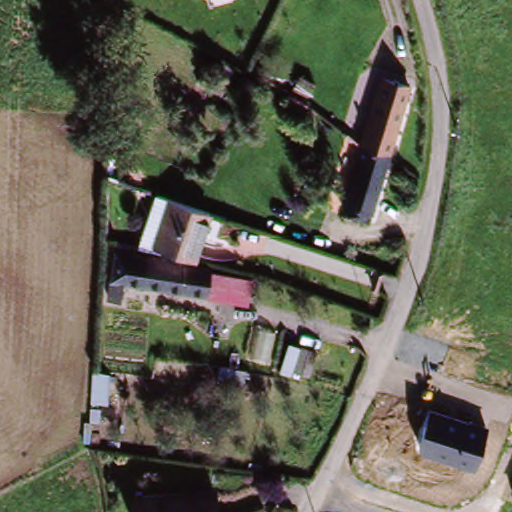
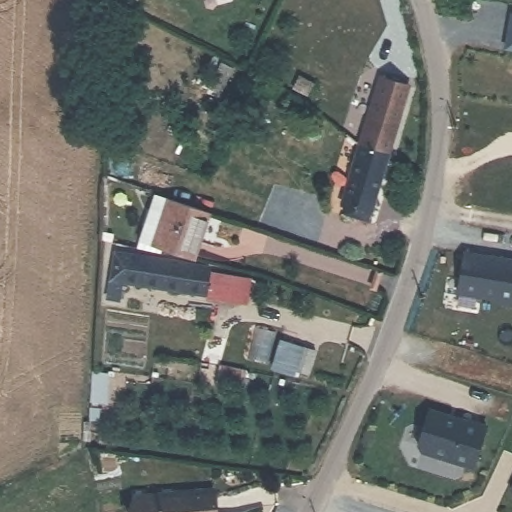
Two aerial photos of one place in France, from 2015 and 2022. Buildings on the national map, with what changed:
new [(512,46),(507,45),(512,18),(512,46)]
unchanged [(382,86),(406,94),(390,152),(374,208),(350,202),(360,165),(345,159),(352,132),(367,143),(382,86)]
unchanged [(153,202),(192,212),(183,255),(142,247),(153,202)]
new [(512,260),(512,303),(502,301),(503,299),(462,292),(469,253),(512,260)]
unchanged [(115,257),(189,267),(185,288),(112,277),(115,257)]
unchanged [(189,267),(249,280),(246,304),(185,288),(189,267)]
unchanged [(295,351),(314,355),(306,380),(289,373),(295,351)]
unchanged [(430,408),(488,425),(475,469),(416,451),(430,408)]
unchanged [(122,484),(220,481),(222,512),(124,512),(122,484)]
unchanged [(512,494),(510,492),(512,487),(512,494)]

